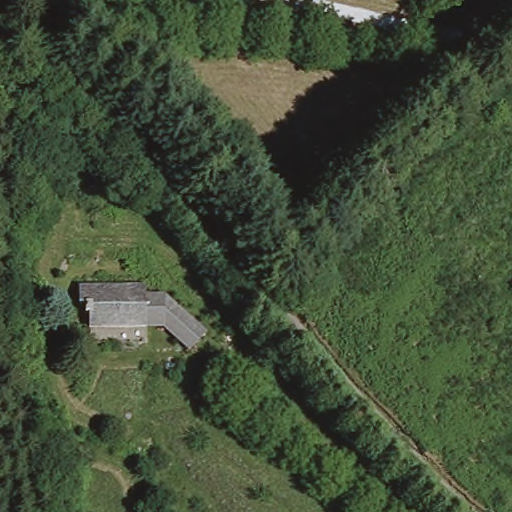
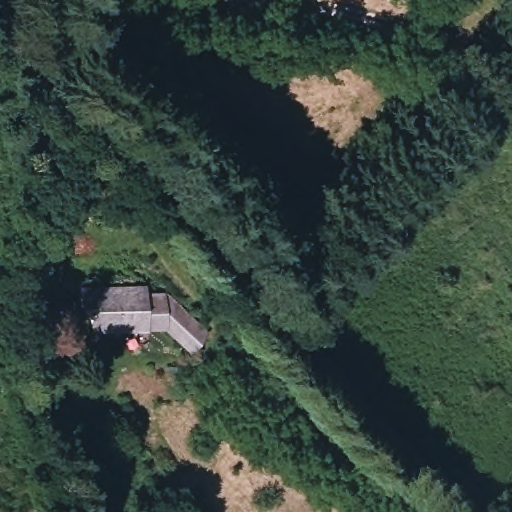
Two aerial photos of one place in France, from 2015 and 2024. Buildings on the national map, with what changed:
unchanged [(146,286),(149,298),(167,295),(210,333),(188,352),(156,328),(76,335),(72,291),(146,286)]

